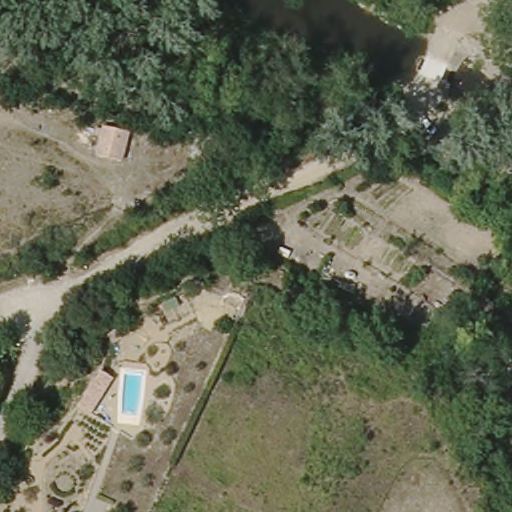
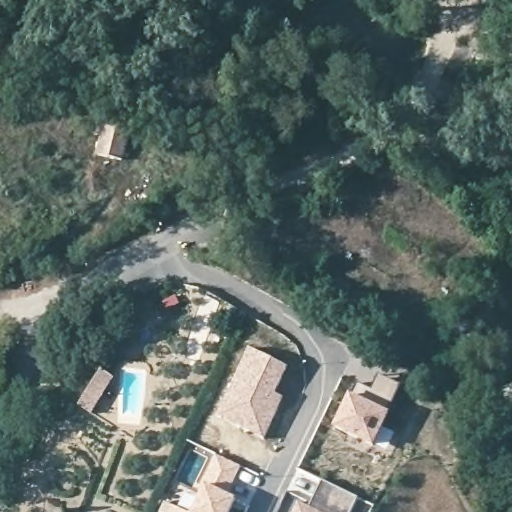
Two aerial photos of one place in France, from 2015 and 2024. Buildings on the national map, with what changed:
unchanged [(131,136),(123,165),(98,157),(105,128),(131,136)]
unchanged [(485,320),(473,311),(484,296),(496,305),(485,320)]
new [(218,418),(248,350),(288,369),(275,395),(284,399),(264,439),(218,418)]
new [(374,394),(381,379),(389,383),(404,390),(376,449),(339,431),(360,387),(374,394)]
new [(236,501),(231,512),(194,512),(206,488),(201,487),(216,455),(241,467),(228,497),(236,501)]
new [(292,512),(298,500),(322,512),(292,512)]
new [(185,512),(172,512),(175,506),(185,512)]

